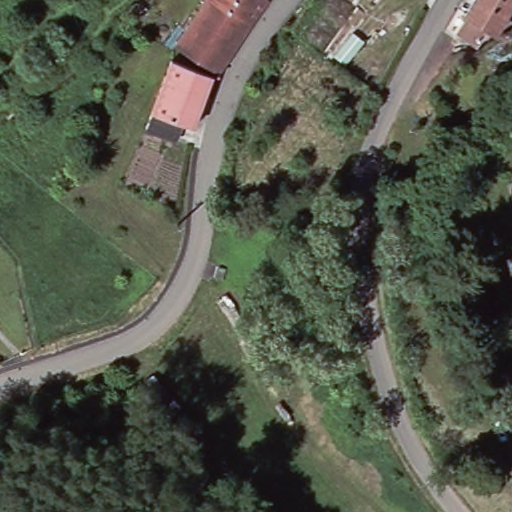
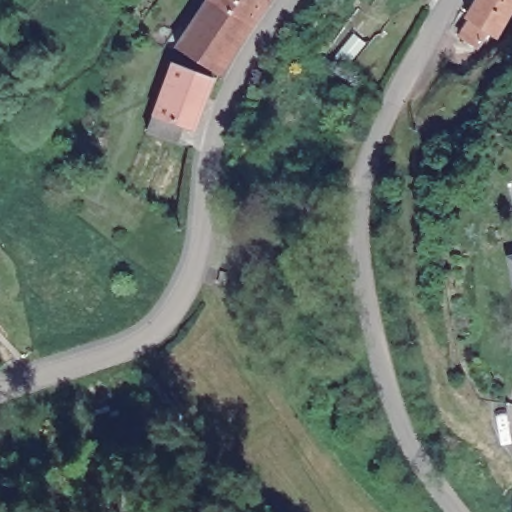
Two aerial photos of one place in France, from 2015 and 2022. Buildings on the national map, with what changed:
unchanged [(173,48),(202,0),(262,0),(217,75),(173,48)]
unchanged [(466,19),(462,17),(472,0),(512,0),(492,35),(485,31),(476,49),(456,37),(466,19)]
unchanged [(194,152),(176,145),(147,133),(153,116),(175,65),(214,82),(193,134),(198,136),(194,152)]
unchanged [(505,305),(492,250),(509,246),(512,260),(512,304),(505,305)]

